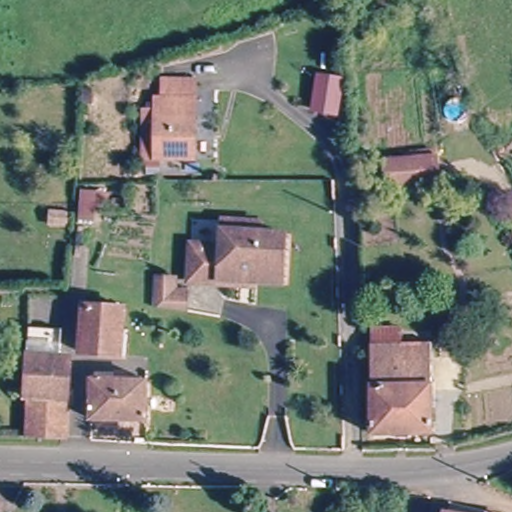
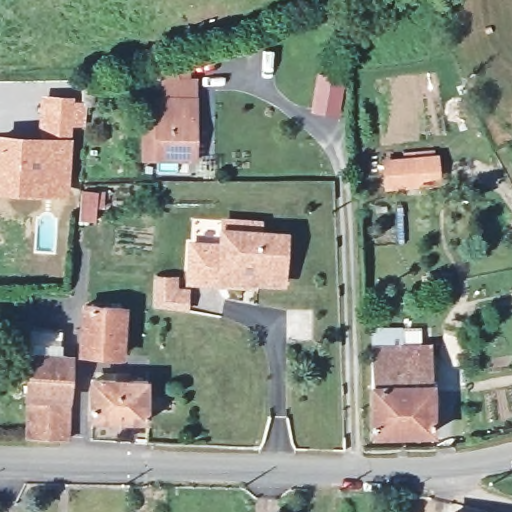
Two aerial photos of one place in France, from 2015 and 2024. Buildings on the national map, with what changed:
unchanged [(316,73),(346,78),(340,117),(309,111),(316,73)]
unchanged [(148,120),(160,120),(160,105),(166,105),(166,87),(196,87),(194,159),(159,160),(147,160),(148,120)]
new [(40,94),(75,95),(74,98),(86,100),(84,127),(73,126),(68,196),(0,190),(0,132),(36,134),(40,94)]
unchanged [(384,189),(380,166),(427,154),(434,179),(384,189)]
new [(81,190),(106,191),(105,207),(97,207),(95,222),(78,220),(81,190)]
unchanged [(217,285),(190,284),(190,272),(189,272),(189,244),(220,245),(222,222),(256,223),(256,234),(283,235),(283,282),(252,282),(252,273),(235,273),(235,277),(217,277),(217,285)]
unchanged [(180,310),(155,305),(154,282),(173,283),(173,293),(180,293),(180,310)]
unchanged [(129,304),(129,349),(77,347),(79,303),(129,304)]
unchanged [(61,355),(27,355),(24,356),(23,327),(62,328),(61,355)]
unchanged [(429,347),(429,437),(372,437),(371,346),(429,347)]
unchanged [(26,371),(15,370),(15,357),(27,358),(27,355),(61,355),(67,355),(65,437),(24,437),(26,371)]
unchanged [(141,387),(139,426),(90,424),(91,386),(141,387)]

